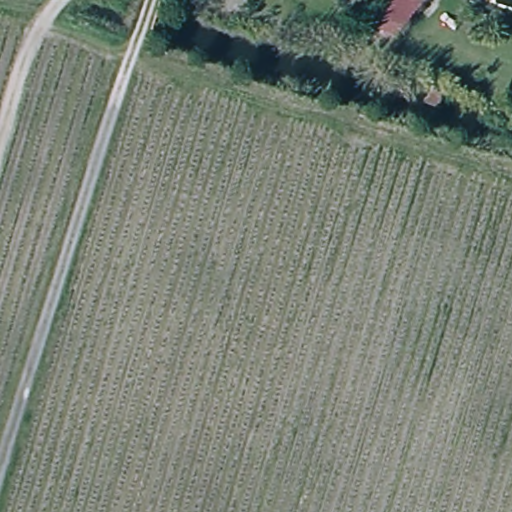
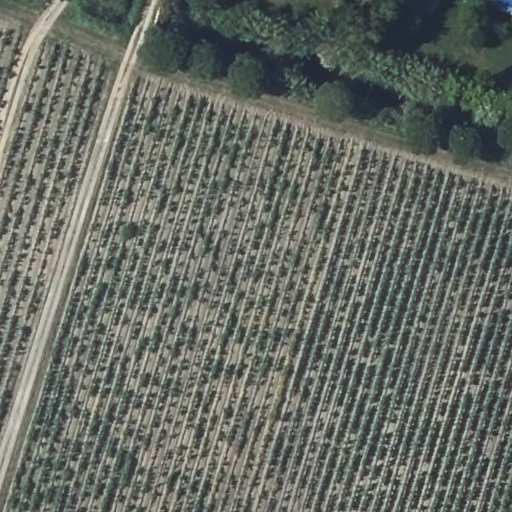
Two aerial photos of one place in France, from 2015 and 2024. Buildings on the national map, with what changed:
unchanged [(426,9),(379,57),(358,35),(390,0),(427,0),(422,6),(426,9)]

